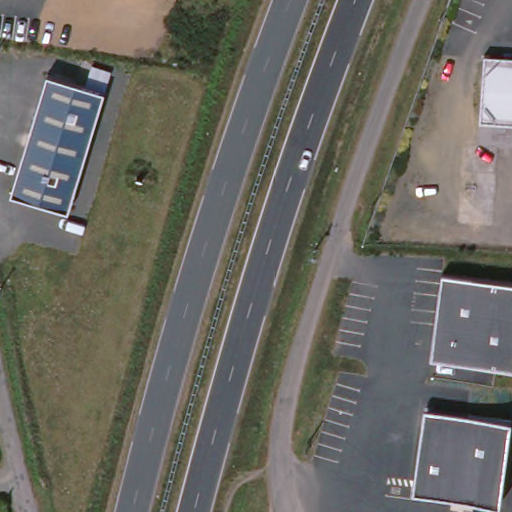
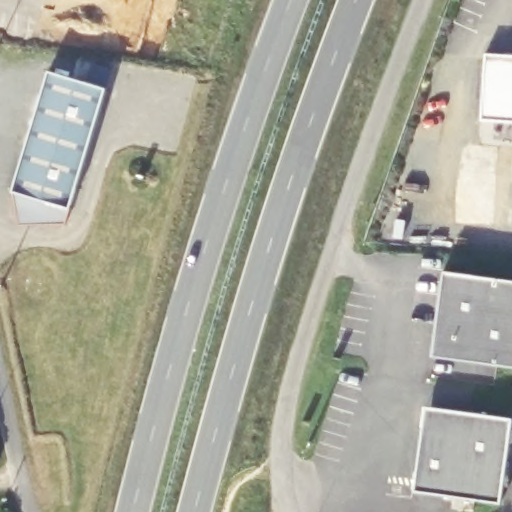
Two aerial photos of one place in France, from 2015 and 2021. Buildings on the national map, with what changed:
unchanged [(481,125),(487,59),(512,61),(512,128),(481,125)]
unchanged [(64,211),(11,192),(46,74),(103,91),(64,211)]
unchanged [(432,357),(443,273),(512,280),(512,370),(432,357)]
unchanged [(512,416),(512,430),(502,500),(416,488),(428,404),(512,416)]

